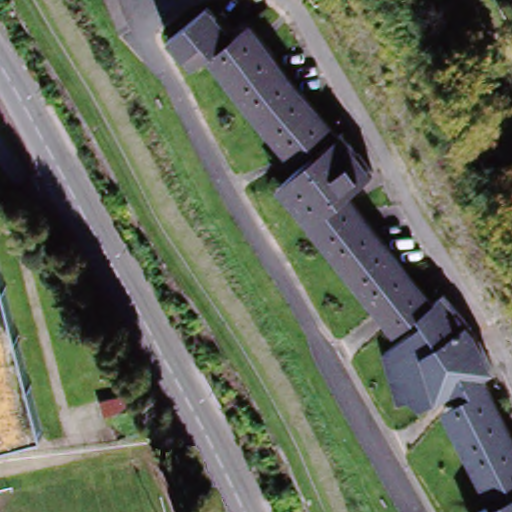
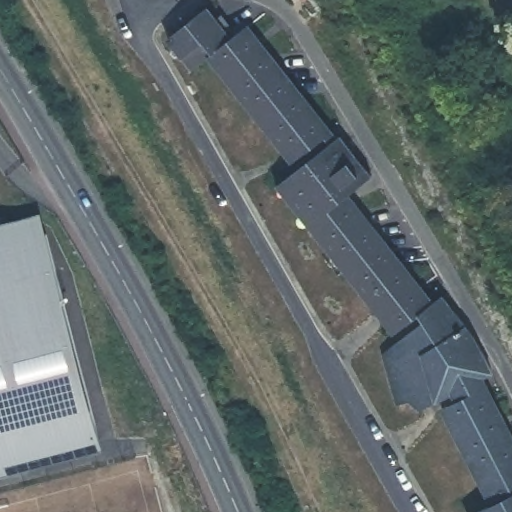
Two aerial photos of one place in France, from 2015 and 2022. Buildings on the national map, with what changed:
unchanged [(211,61),(201,69),(191,76),(169,42),(208,12),(227,37),(233,46),(211,61)]
unchanged [(331,151),(341,145),(373,184),(342,204),(429,313),(445,303),(476,342),(495,379),(479,388),(512,456),(512,512),(487,512),(493,508),(446,413),(450,409),(445,401),(420,414),(410,405),(395,408),(383,357),(413,336),(407,328),(397,335),(280,185),(300,172),(211,61),(233,46),(245,37),(331,151)]
new [(102,449),(0,476),(0,223),(40,212),(102,449)]
demolished [(42,437),(0,449),(0,276),(42,437)]
demolished [(124,409),(98,416),(93,401),(120,395),(124,409)]

